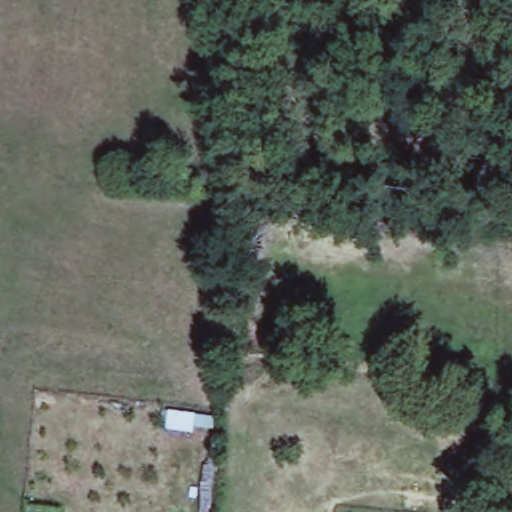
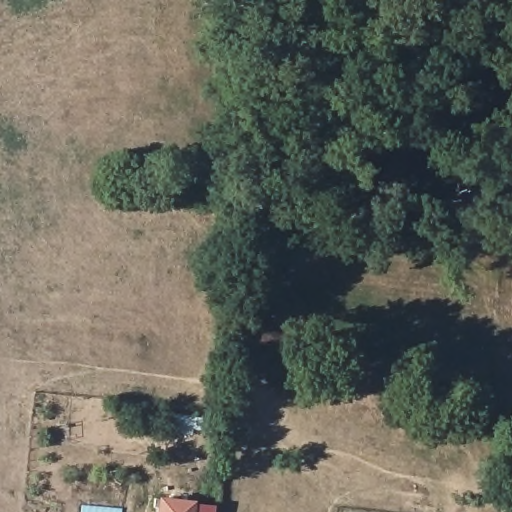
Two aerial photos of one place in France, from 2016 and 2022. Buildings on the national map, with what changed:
new [(194,500),(193,512),(158,512),(160,496),(194,500)]

